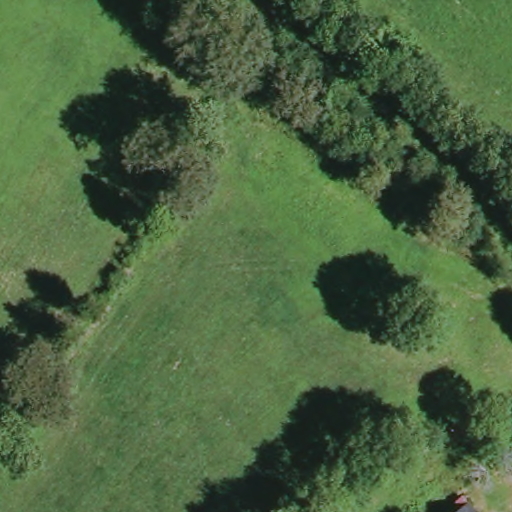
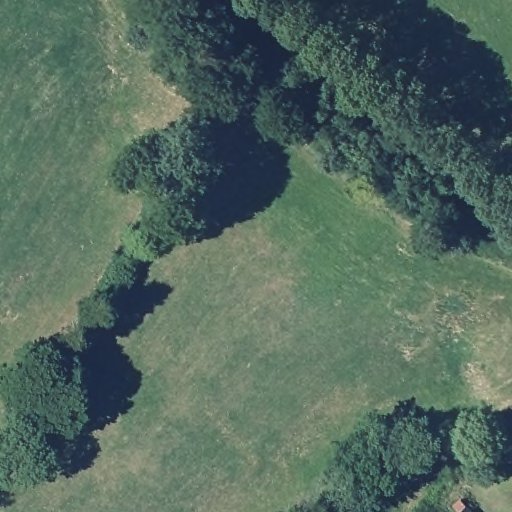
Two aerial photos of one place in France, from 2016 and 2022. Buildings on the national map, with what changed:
unchanged [(488,512),(471,512),(481,504),(488,512)]

